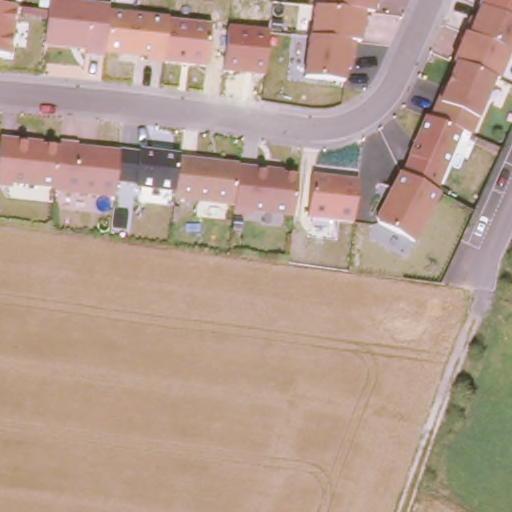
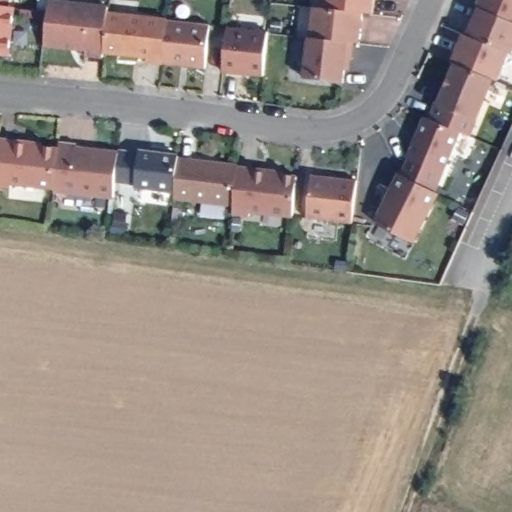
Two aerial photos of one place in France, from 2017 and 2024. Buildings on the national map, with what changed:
unchanged [(16,4),(13,55),(0,55),(0,0),(11,0),(10,3),(16,4)]
unchanged [(105,9),(209,22),(205,65),(86,55),(86,50),(47,43),(51,0),(74,0),(105,3),(105,9)]
unchanged [(367,15),(364,45),(353,42),(350,67),(345,67),(344,86),(305,81),(310,36),(313,4),(324,5),(324,0),(378,0),(377,14),(367,15)]
unchanged [(509,52),(500,80),(494,79),(472,132),(461,131),(437,189),(439,191),(411,240),(377,222),(401,171),(425,113),(432,116),(454,63),(452,62),(463,35),(467,36),(482,0),(512,0),(512,52),(509,52)]
unchanged [(264,75),(224,73),(227,26),(267,30),(264,75)]
unchanged [(233,201),(175,194),(175,188),(136,184),(137,181),(117,179),(115,196),(12,185),(10,191),(0,189),(0,134),(295,169),(291,217),(232,208),(233,201)]
unchanged [(309,217),(312,173),(357,177),(352,222),(309,217)]

